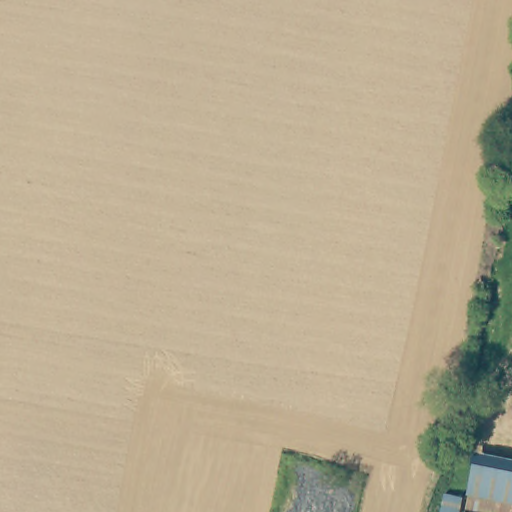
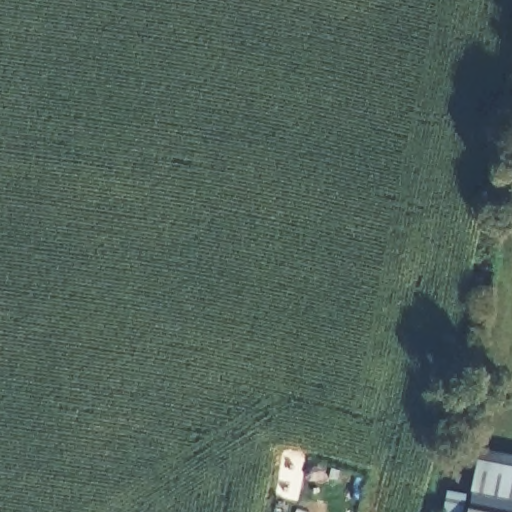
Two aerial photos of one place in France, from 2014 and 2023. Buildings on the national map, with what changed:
unchanged [(512,470),(512,512),(464,512),(473,462),(512,470)]
unchanged [(459,495),(456,512),(438,512),(442,491),(459,495)]

